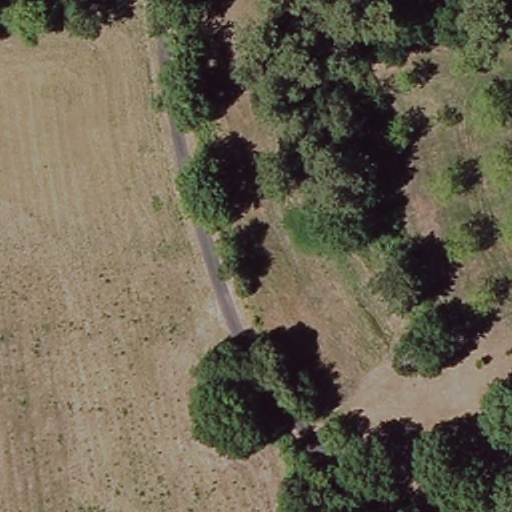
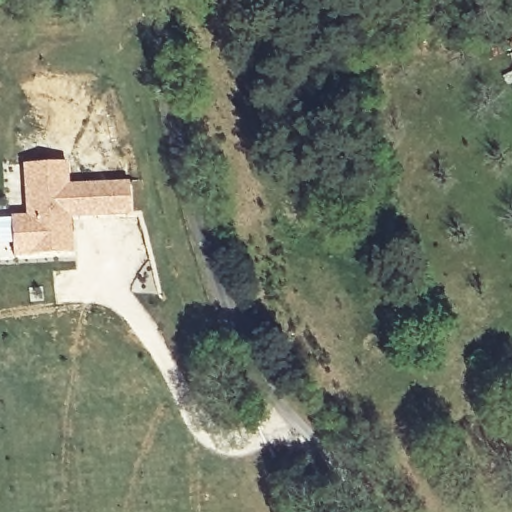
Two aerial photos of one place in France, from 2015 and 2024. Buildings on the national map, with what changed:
new [(22,166),(65,163),(67,185),(86,184),(142,179),(147,214),(137,214),(137,215),(127,217),(127,214),(89,216),(70,218),(73,254),(13,258),(10,220),(25,218),(22,166)]

